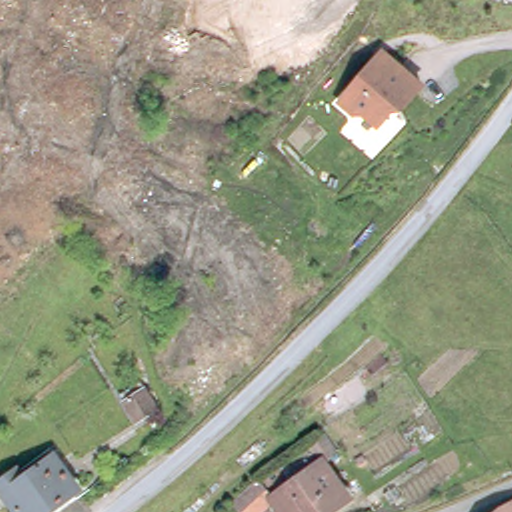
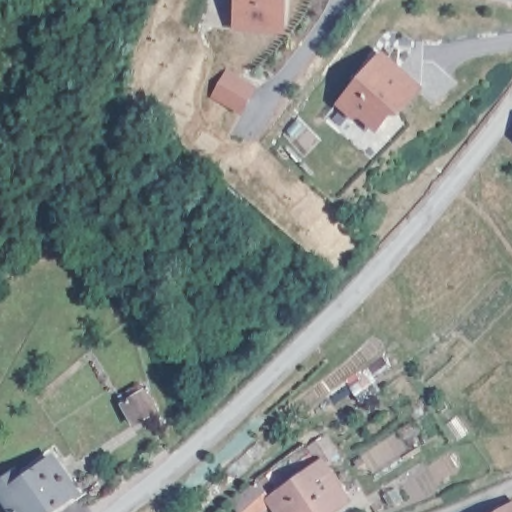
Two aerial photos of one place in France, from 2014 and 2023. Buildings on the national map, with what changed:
new [(286,32),(233,28),(236,0),(289,0),(286,32)]
unchanged [(393,115),(382,130),(367,118),(358,120),(343,108),(383,56),(425,88),(405,114),(393,115)]
new [(242,115),(210,97),(225,69),(257,88),(242,115)]
unchanged [(139,384),(152,403),(132,418),(120,399),(139,384)]
unchanged [(21,512),(0,484),(0,476),(3,474),(15,464),(21,473),(50,449),(75,482),(39,512),(21,512)]
unchanged [(260,478),(275,467),(286,482),(322,457),(347,495),(323,512),(284,512),(270,493),(260,478)]
unchanged [(512,501),(512,502),(512,512),(489,512),(492,510),(512,501)]

